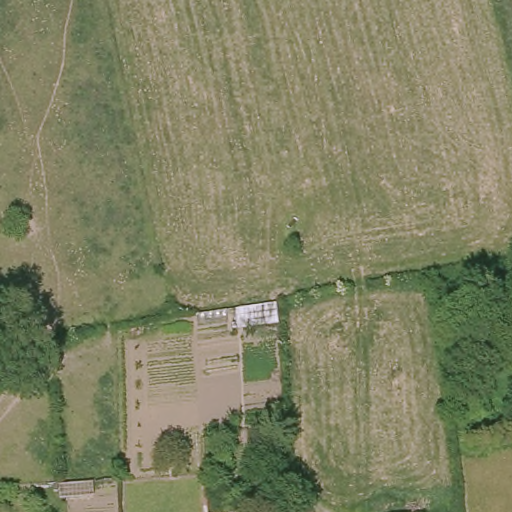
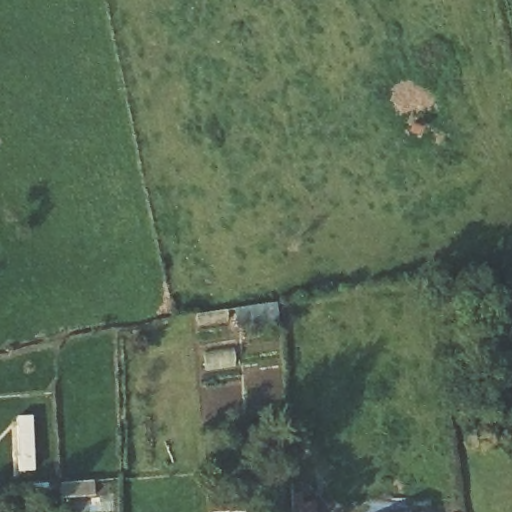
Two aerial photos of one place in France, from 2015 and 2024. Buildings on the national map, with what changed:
[]

